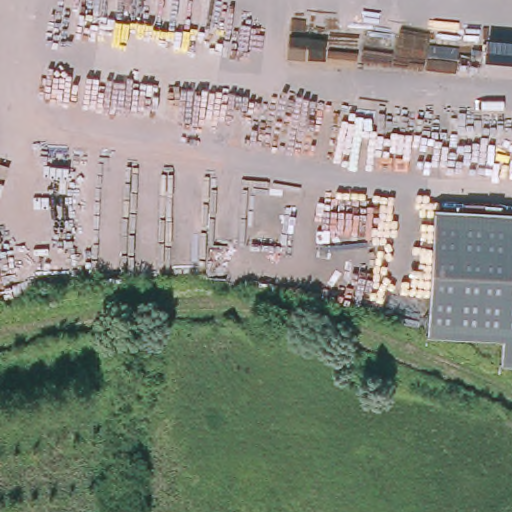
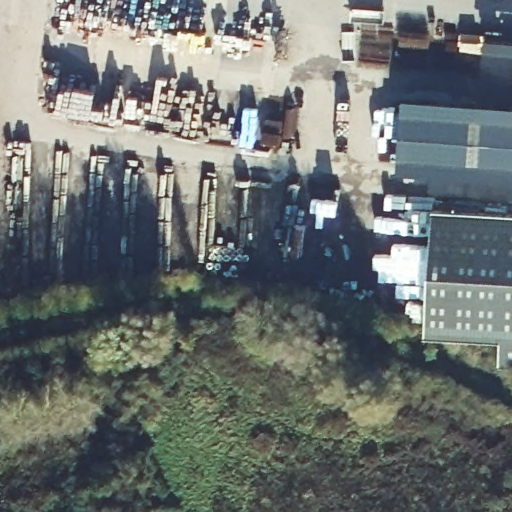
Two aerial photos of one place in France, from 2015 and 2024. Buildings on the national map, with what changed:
new [(512,180),(398,171),(403,98),(512,106),(512,180)]
unchanged [(512,367),(503,366),(505,340),(430,335),(437,208),(512,212),(512,367)]

